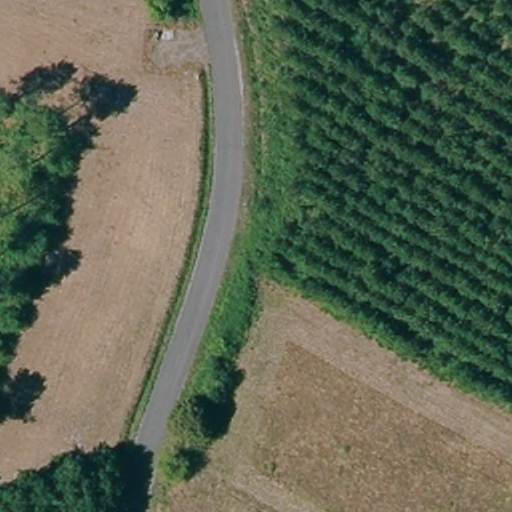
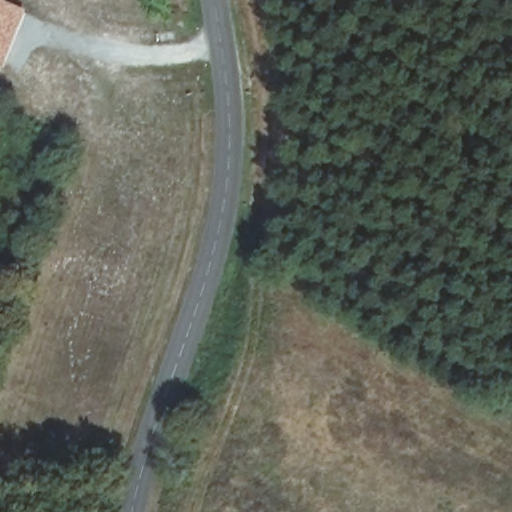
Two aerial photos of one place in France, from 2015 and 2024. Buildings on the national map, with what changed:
new [(2,70),(0,70),(0,0),(2,0),(27,10),(2,70)]

